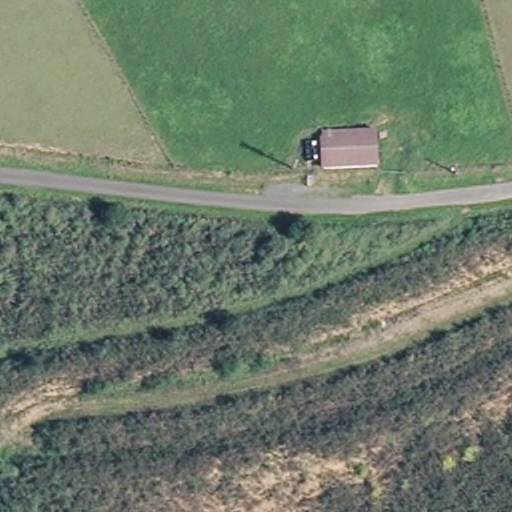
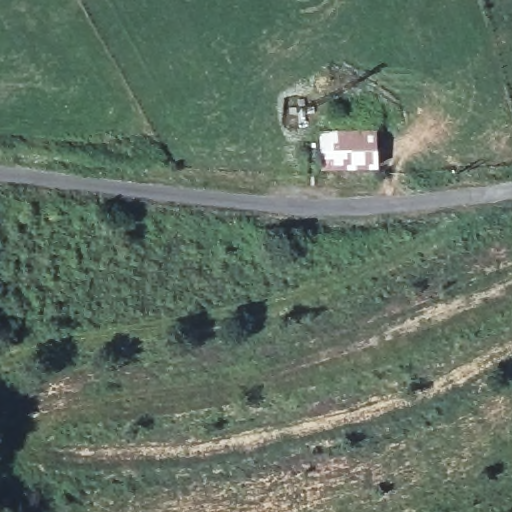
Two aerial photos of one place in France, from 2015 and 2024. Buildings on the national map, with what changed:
unchanged [(373,125),(375,163),(325,165),(323,128),(373,125)]

